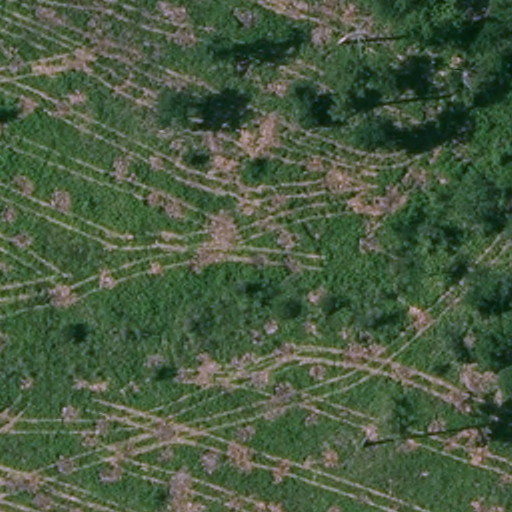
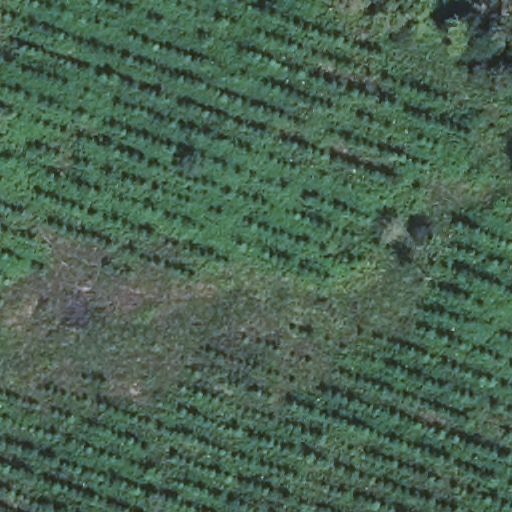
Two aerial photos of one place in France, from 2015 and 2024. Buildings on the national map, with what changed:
[]

